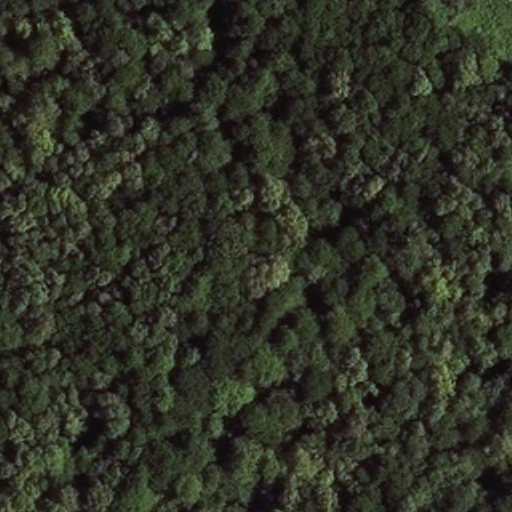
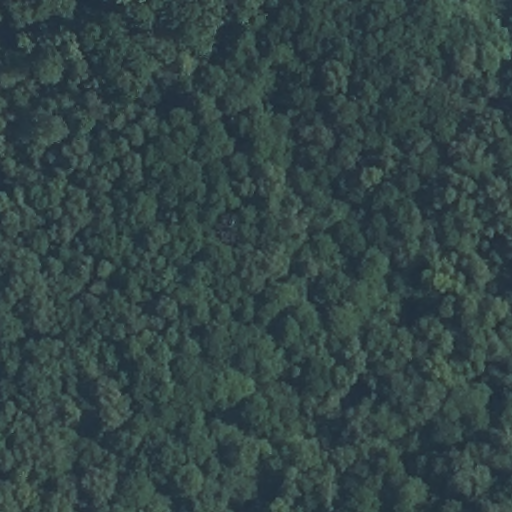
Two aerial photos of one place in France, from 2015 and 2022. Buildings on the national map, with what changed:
[]

